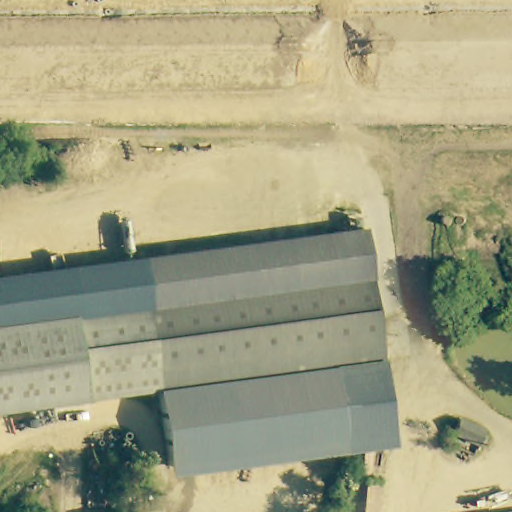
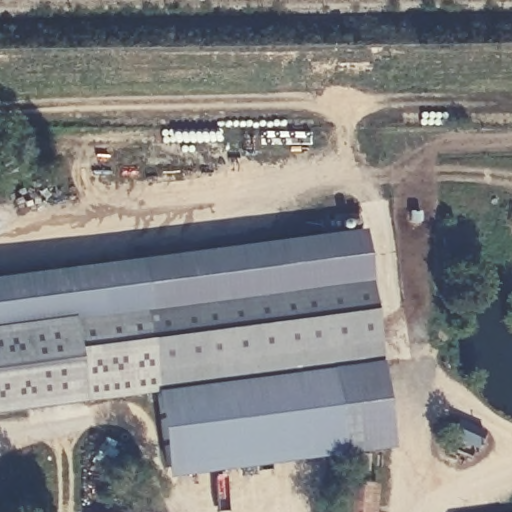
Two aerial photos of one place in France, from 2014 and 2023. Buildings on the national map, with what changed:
unchanged [(327,512),(332,468),(344,469),(348,440),(335,442),(173,463),(165,403),(163,393),(163,391),(144,261),(365,227),(384,371),(386,389),(392,435),(365,438),(363,471),(371,472),(366,512),(327,512)]
unchanged [(135,396),(111,399),(0,416),(0,283),(59,274),(75,271),(144,261),(163,391),(135,396)]
unchanged [(481,423),(480,425),(479,427),(475,441),(448,434),(453,415),(481,423)]
unchanged [(502,512),(512,511),(512,512),(502,512)]

